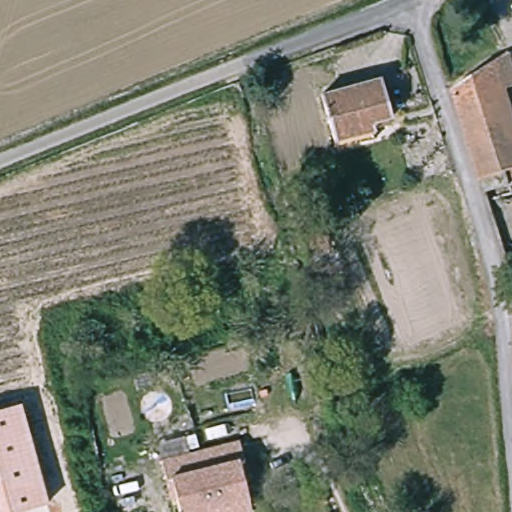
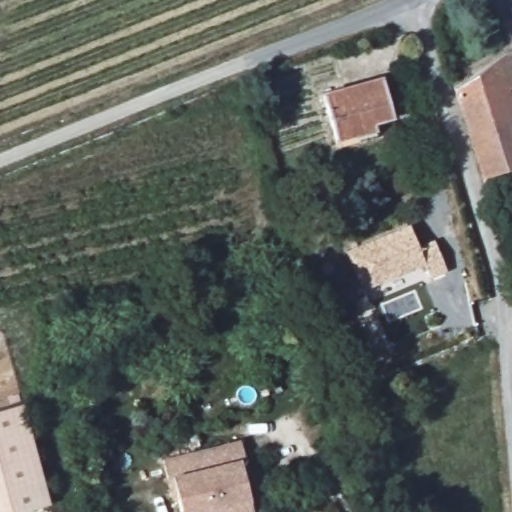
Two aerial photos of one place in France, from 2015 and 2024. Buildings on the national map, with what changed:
unchanged [(457,76),(501,51),(512,97),(512,162),(480,171),(457,76)]
unchanged [(396,124),(336,138),(324,89),(381,74),(396,124)]
new [(409,223),(418,245),(434,238),(447,270),(429,276),(424,263),(361,290),(344,251),(409,223)]
unchanged [(46,502),(16,512),(0,512),(0,410),(23,403),(46,502)]
unchanged [(167,479),(163,460),(203,451),(241,441),(246,460),(241,461),(249,496),(250,500),(253,512),(181,512),(172,477),(167,479)]

